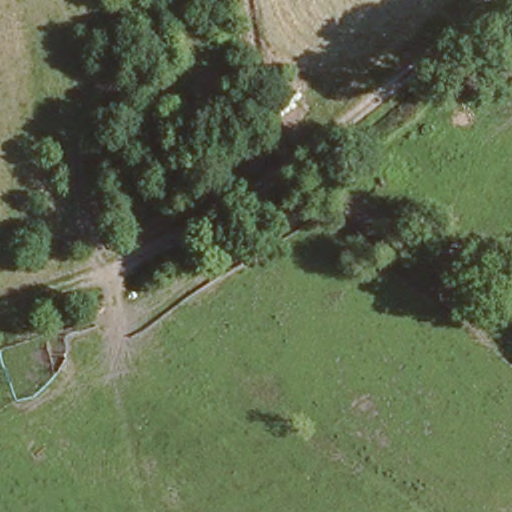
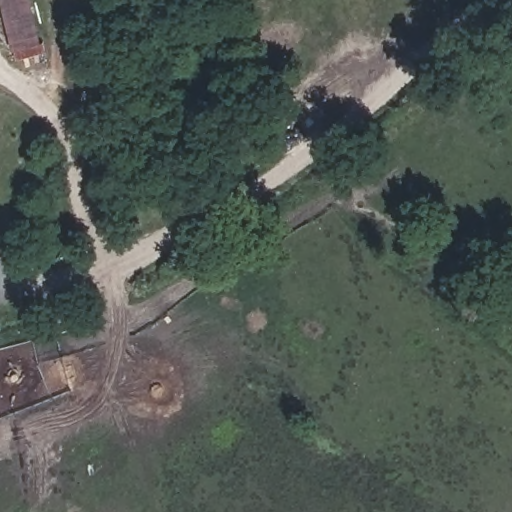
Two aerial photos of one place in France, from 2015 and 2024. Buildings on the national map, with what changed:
new [(0,7),(0,0),(29,0),(42,56),(14,63),(0,7)]

